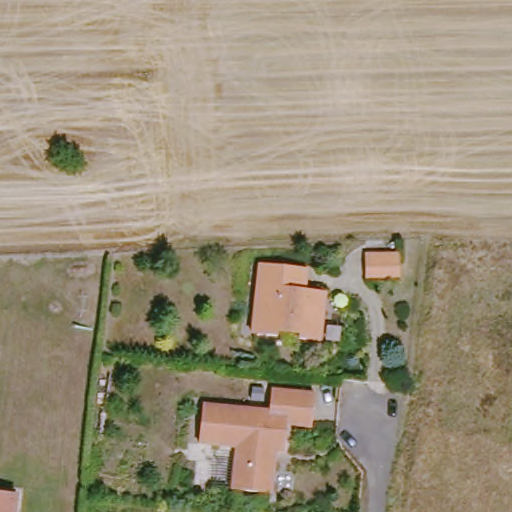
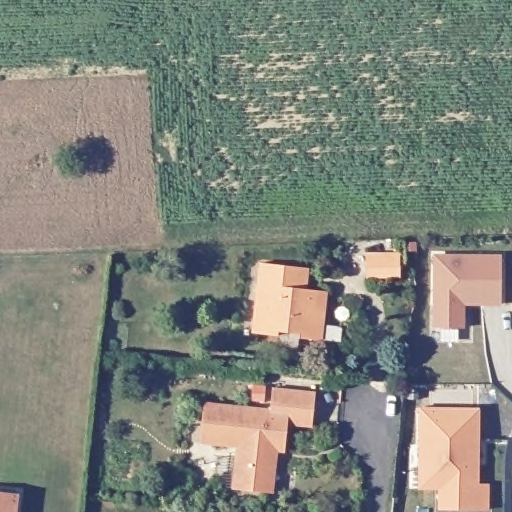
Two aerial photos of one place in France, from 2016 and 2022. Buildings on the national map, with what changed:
new [(465,305),(465,327),(433,327),(433,255),(501,255),(501,306),(465,305)]
unchanged [(397,263),(395,279),(363,276),(365,259),(397,263)]
unchanged [(309,265),(307,289),(322,291),(317,337),(295,335),(292,328),(272,326),(272,333),(250,331),(255,283),(260,280),(262,260),(300,264),(309,265)]
unchanged [(307,410),(305,425),(283,424),(280,458),(263,457),(262,467),(269,468),(265,499),(225,496),(230,452),(192,449),(198,402),(264,410),(267,388),(308,392),(307,410)]
new [(419,407),(480,408),(480,483),(490,484),(489,511),(439,510),(437,490),(418,490),(419,407)]
unchanged [(11,512),(0,512),(0,493),(13,494),(11,512)]

